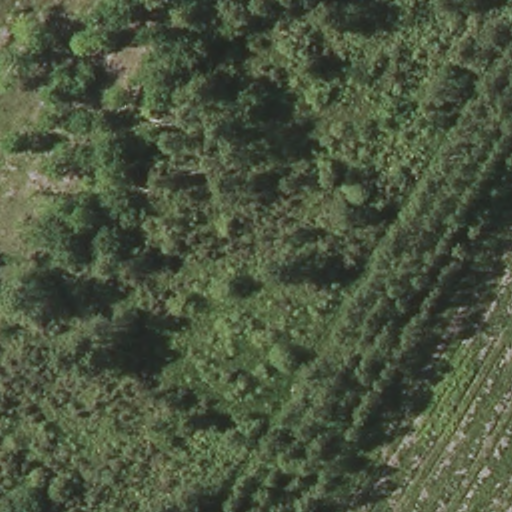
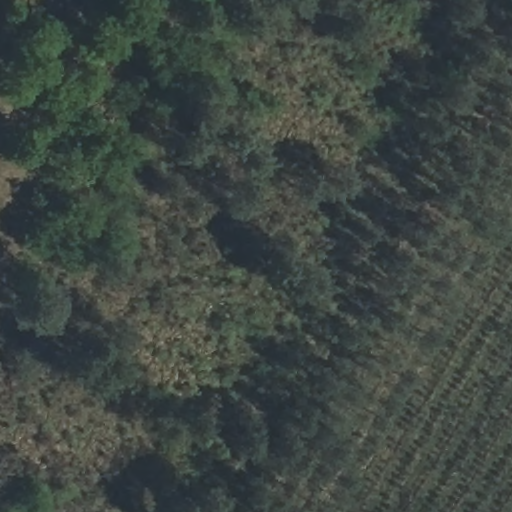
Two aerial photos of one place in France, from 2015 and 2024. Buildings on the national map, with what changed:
[]

